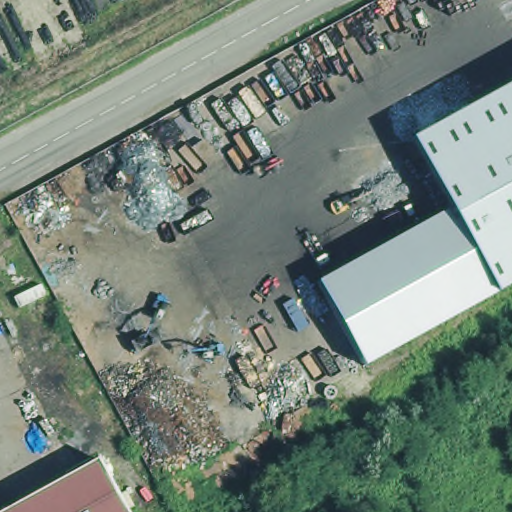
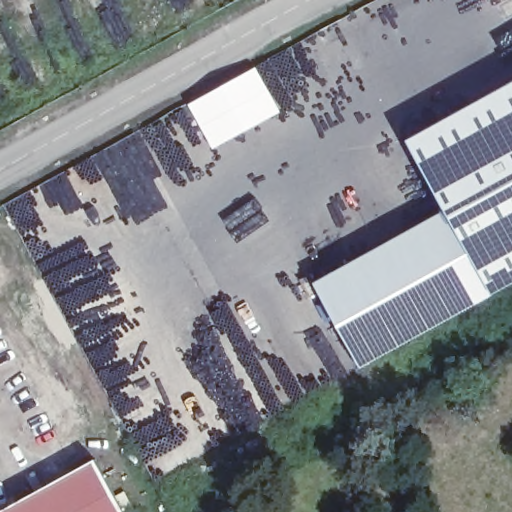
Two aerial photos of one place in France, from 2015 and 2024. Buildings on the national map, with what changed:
new [(255,65),(282,111),(213,148),(187,103),(255,65)]
unchanged [(497,297),(450,213),(412,143),(512,87),(512,288),(497,297)]
unchanged [(497,297),(365,369),(319,285),(450,213),(497,297)]
unchanged [(133,512),(0,512),(0,507),(100,454),(133,512)]

